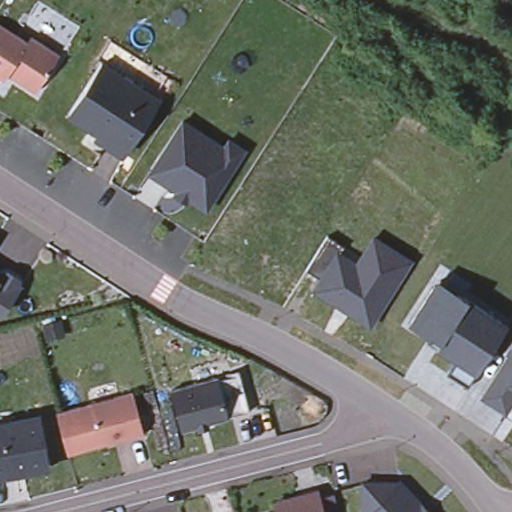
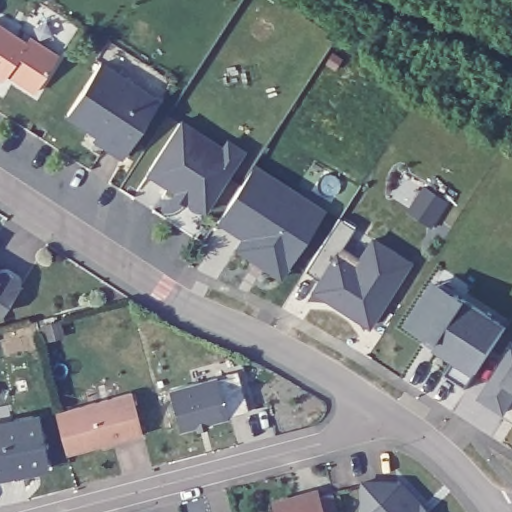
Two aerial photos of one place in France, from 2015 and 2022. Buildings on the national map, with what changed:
unchanged [(27,41),(7,72),(3,77),(0,74),(0,23),(27,41)]
unchanged [(27,41),(30,35),(58,54),(35,90),(7,72),(27,41)]
new [(334,49),(344,56),(337,67),(327,59),(334,49)]
unchanged [(159,100),(123,154),(87,131),(90,127),(67,112),(100,61),(159,100)]
unchanged [(186,115),(228,142),(224,149),(240,159),(211,202),(153,165),(186,115)]
new [(300,191),(288,207),(313,225),(285,268),(261,252),(257,258),(237,246),(243,235),(218,218),(255,162),(300,191)]
unchanged [(360,259),(373,237),(410,259),(370,330),(310,294),(318,277),(307,271),(327,239),(360,259)]
unchanged [(5,268),(17,276),(19,283),(2,309),(0,309),(0,270),(5,268)]
unchanged [(503,329),(477,373),(407,327),(435,282),(503,329)]
unchanged [(480,401),(512,351),(512,408),(505,417),(480,401)]
unchanged [(217,376),(217,378),(238,372),(248,410),(227,415),(180,428),(169,389),(217,376)]
unchanged [(135,390),(145,432),(69,451),(58,410),(135,390)]
unchanged [(48,466),(0,474),(0,410),(10,408),(12,419),(40,414),(48,466)]
unchanged [(432,512),(362,512),(361,511),(362,475),(398,476),(432,512)]
unchanged [(327,512),(265,512),(265,511),(304,501),(302,492),(320,487),(327,512)]

